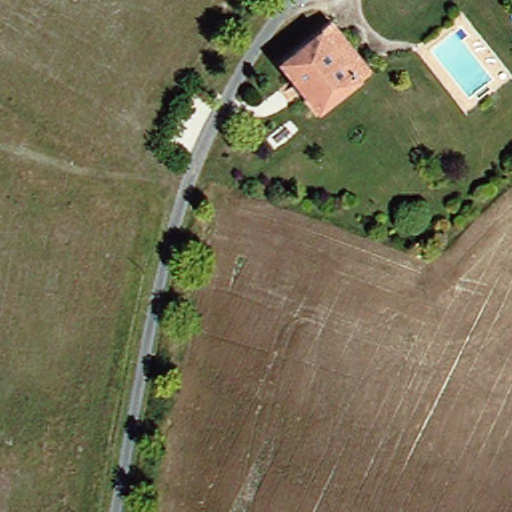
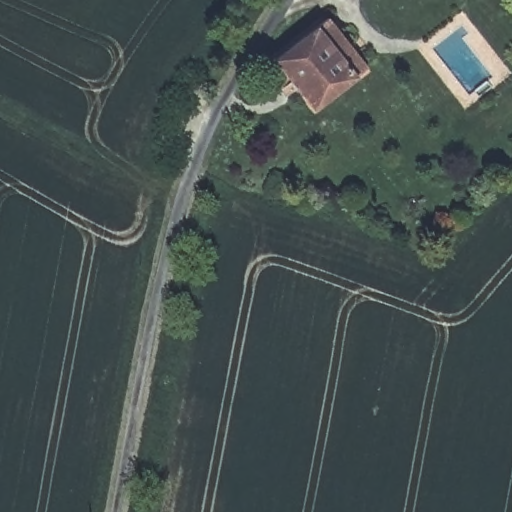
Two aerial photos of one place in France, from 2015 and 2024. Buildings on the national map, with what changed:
unchanged [(322,111),(285,57),(331,25),(343,15),(365,47),(380,67),(322,111)]

